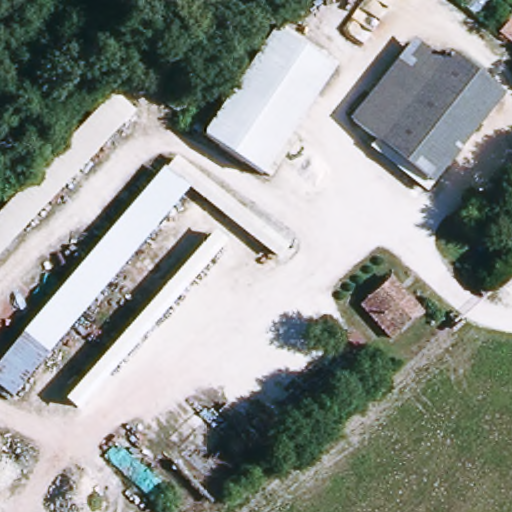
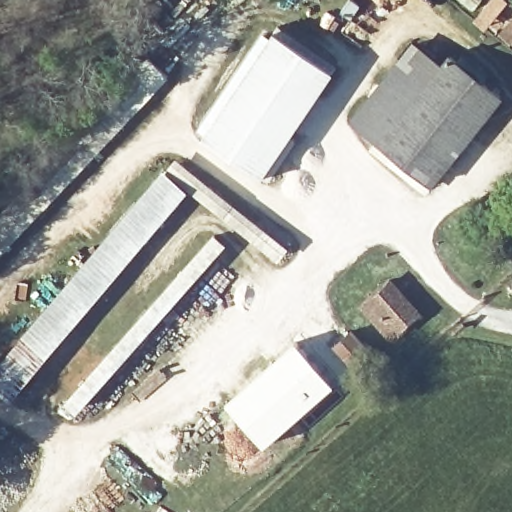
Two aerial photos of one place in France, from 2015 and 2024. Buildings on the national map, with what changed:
unchanged [(253,178),(196,135),(269,33),(326,73),(253,178)]
unchanged [(414,40),(443,61),(422,84),(395,64),(414,40)]
unchanged [(428,187),(347,121),(395,64),(422,84),(443,61),(449,54),(499,93),(428,187)]
unchanged [(136,114),(0,257),(0,212),(113,92),(136,114)]
unchanged [(177,156),(289,245),(279,259),(188,190),(12,399),(0,389),(0,362),(165,170),(177,156)]
unchanged [(385,313),(376,321),(360,302),(389,277),(419,313),(399,330),(385,313)]
unchanged [(375,353),(358,369),(334,345),(352,329),(375,353)]
new [(265,445),(226,401),(296,341),(335,383),(265,445)]

